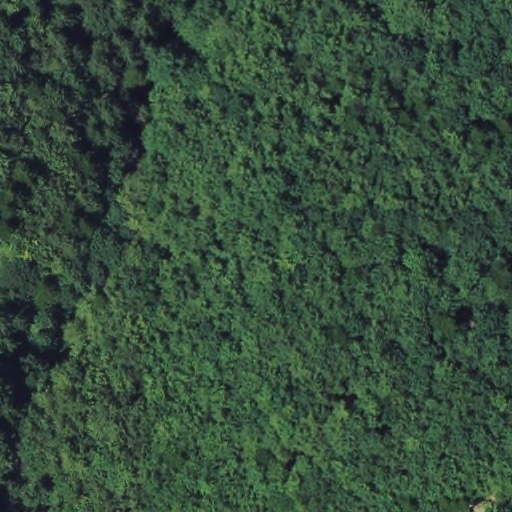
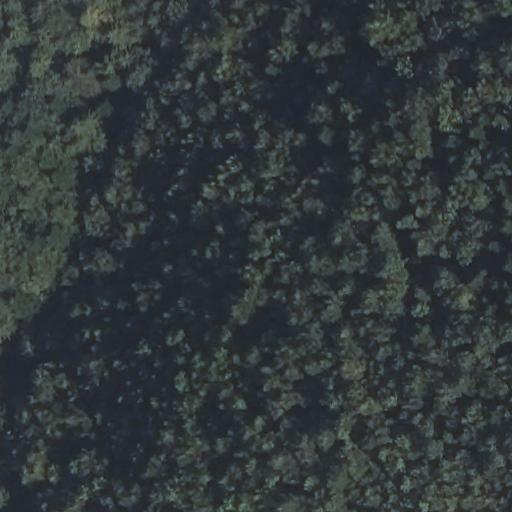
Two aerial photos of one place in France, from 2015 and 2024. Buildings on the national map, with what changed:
[]

